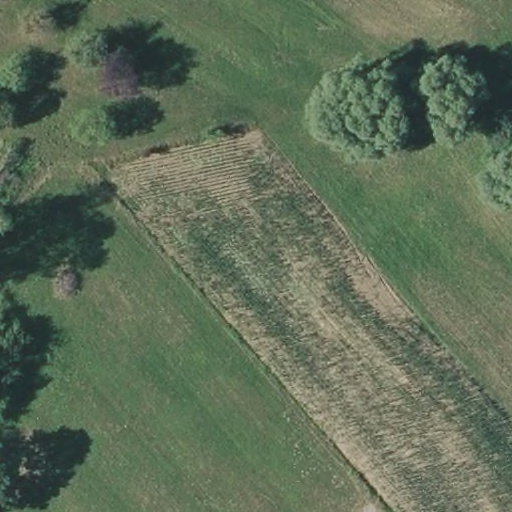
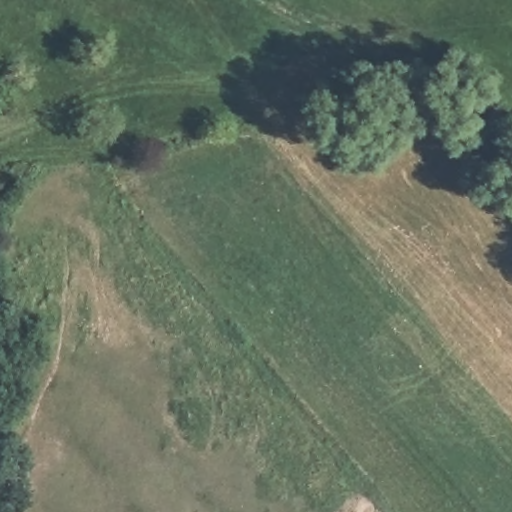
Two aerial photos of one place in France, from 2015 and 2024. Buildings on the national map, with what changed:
[]

